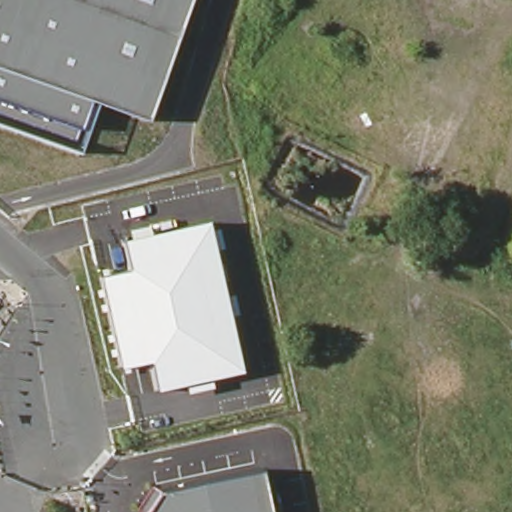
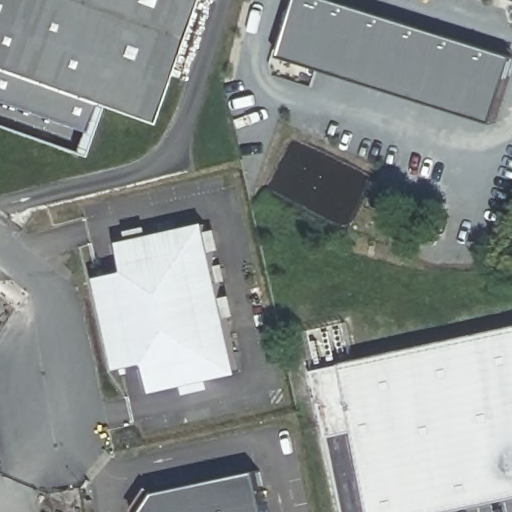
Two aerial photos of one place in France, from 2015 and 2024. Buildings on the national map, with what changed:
unchanged [(89,101),(79,131),(70,150),(0,126),(0,0),(190,0),(147,121),(89,101)]
new [(491,120),(315,67),(310,84),(272,71),(296,0),(338,0),(511,53),(491,120)]
unchanged [(99,277),(129,271),(122,241),(131,239),(129,229),(149,226),(149,235),(207,221),(209,231),(219,228),(224,249),(215,251),(225,296),(234,294),(238,314),(229,317),(242,372),(209,379),(212,388),(189,393),(184,384),(156,391),(149,362),(120,368),(99,277)]
new [(443,512),(375,512),(359,431),(329,436),(314,370),(346,363),(512,326),(512,497),(443,512)]
unchanged [(269,512),(141,512),(134,507),(149,485),(158,493),(259,470),(269,512)]

